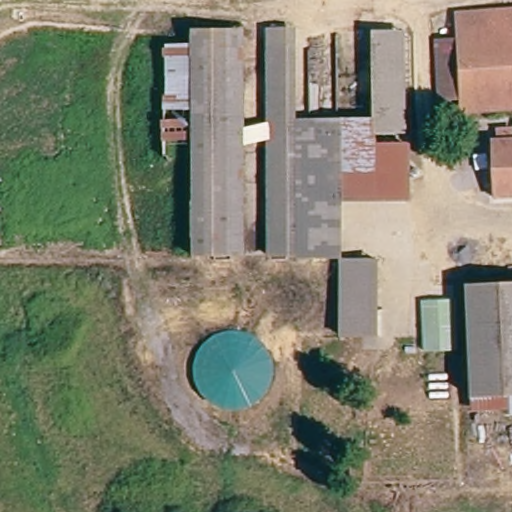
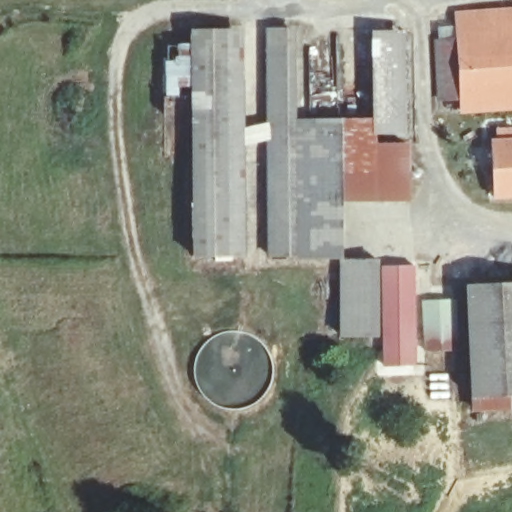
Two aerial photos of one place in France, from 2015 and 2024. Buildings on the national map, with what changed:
unchanged [(495,114),(463,115),(458,53),(457,36),(505,34),(504,14),(512,14),(512,114),(495,114)]
unchanged [(239,257),(202,257),(195,161),(186,45),(186,34),(224,32),(239,257)]
unchanged [(236,32),(249,257),(239,257),(224,32),(236,32)]
unchanged [(372,119),(372,32),(406,32),(407,131),(375,132),(377,140),(413,139),(414,195),(342,195),(347,251),(307,253),(298,122),(372,119)]
unchanged [(259,40),(293,39),(298,122),(307,253),(273,252),(259,40)]
unchanged [(167,96),(165,45),(186,45),(195,161),(164,162),(159,97),(167,96)]
unchanged [(495,196),(492,141),(512,141),(512,195),(495,196)]
unchanged [(345,266),(377,266),(378,336),(347,337),(345,266)]
new [(377,266),(417,266),(419,366),(380,366),(378,336),(377,266)]
unchanged [(472,394),(471,284),(512,285),(512,393),(472,394)]
unchanged [(422,305),(455,304),(457,354),(426,355),(422,305)]
new [(512,393),(512,416),(511,417),(510,411),(473,411),(472,394),(512,393)]

